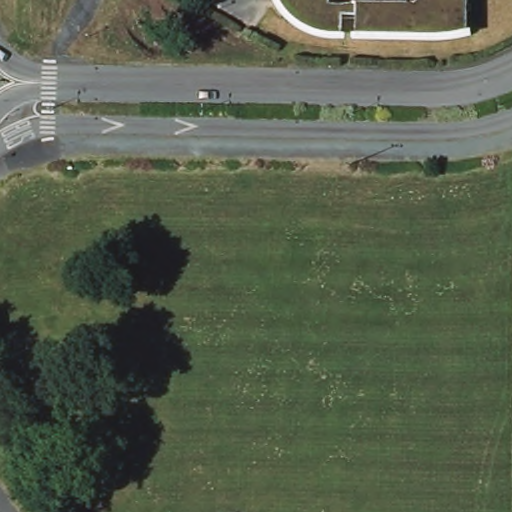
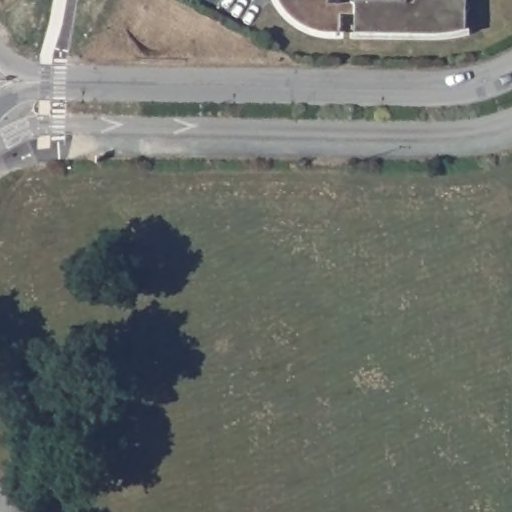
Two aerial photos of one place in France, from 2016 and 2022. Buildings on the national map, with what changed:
unchanged [(463,29),(451,33),(445,34),(434,33),(350,32),(350,12),(335,11),(333,32),(325,32),(316,31),(305,28),(296,25),(289,20),(283,16),(278,11),(273,6),(270,0),(321,0),(320,0),(323,2),(327,3),(335,2),(345,1),(345,0),(465,0),(463,29)]

